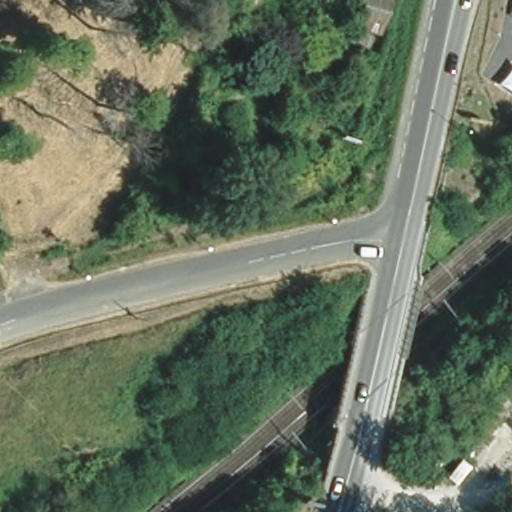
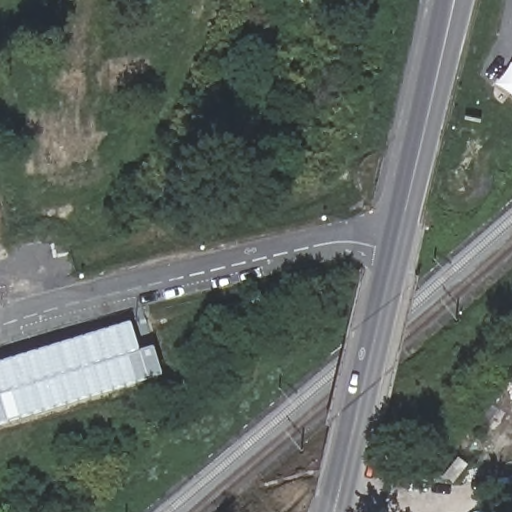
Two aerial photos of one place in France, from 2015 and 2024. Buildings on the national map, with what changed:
unchanged [(255,0),(261,0),(259,2),(255,0)]
unchanged [(379,34),(353,26),(360,0),(386,0),(388,0),(379,34)]
unchanged [(376,40),(374,50),(359,45),(362,36),(376,40)]
unchanged [(306,75),(321,40),(330,45),(316,80),(306,75)]
unchanged [(303,79),(315,83),(310,94),(299,90),(303,79)]
unchanged [(325,268),(337,271),(336,275),(335,281),(322,279),(324,274),(325,268)]
new [(129,321),(138,349),(154,345),(162,373),(0,423),(0,362),(129,321)]

